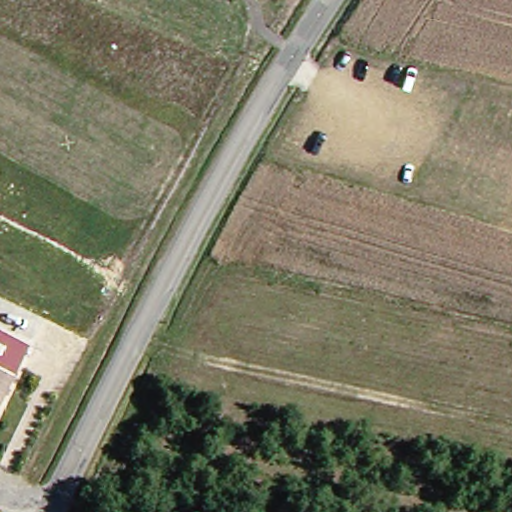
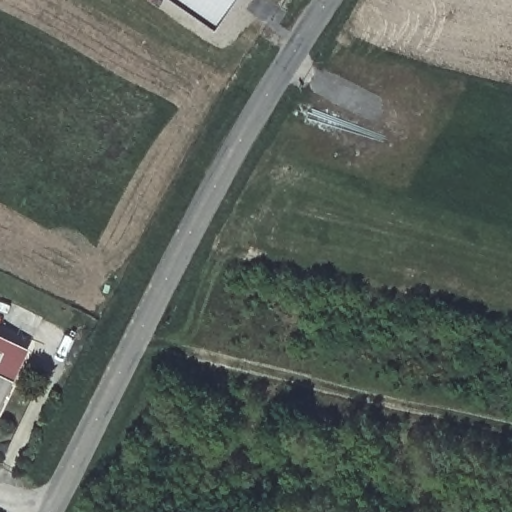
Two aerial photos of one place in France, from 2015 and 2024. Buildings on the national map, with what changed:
new [(215,32),(170,0),(238,0),(215,32)]
unchanged [(0,338),(26,351),(0,402),(0,338)]

